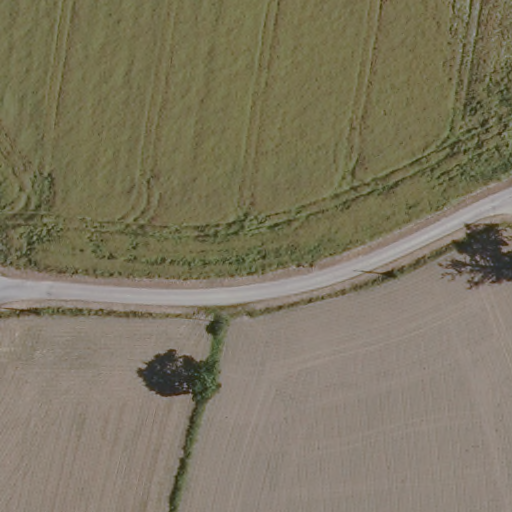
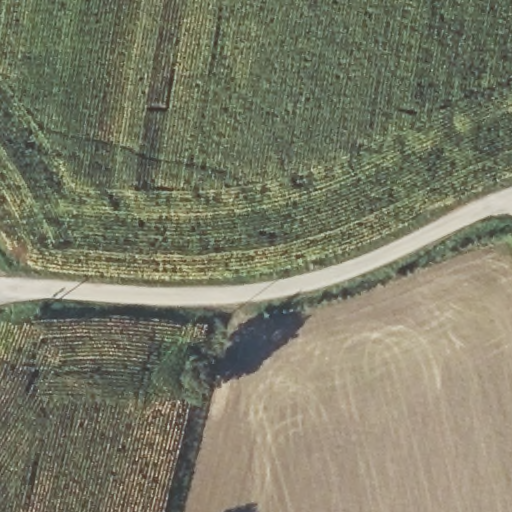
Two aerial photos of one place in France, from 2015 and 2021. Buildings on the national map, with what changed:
[]

